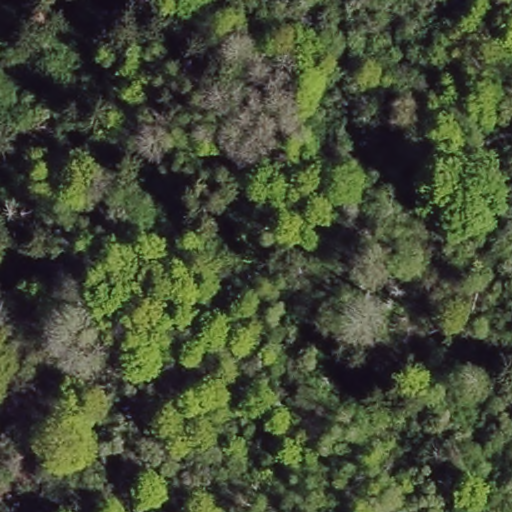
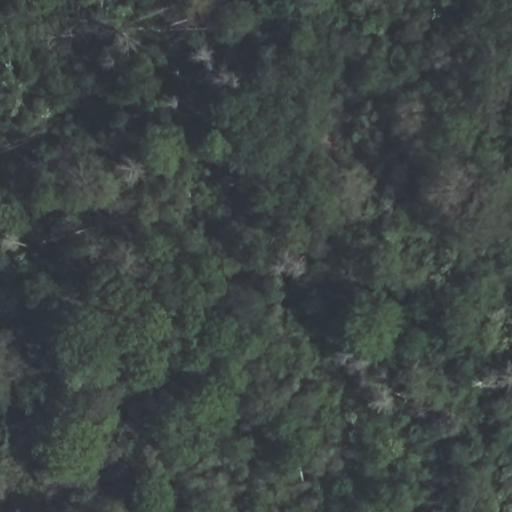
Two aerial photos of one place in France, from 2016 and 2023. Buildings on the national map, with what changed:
unchanged [(5,7),(0,3),(0,0),(7,0),(5,7)]

